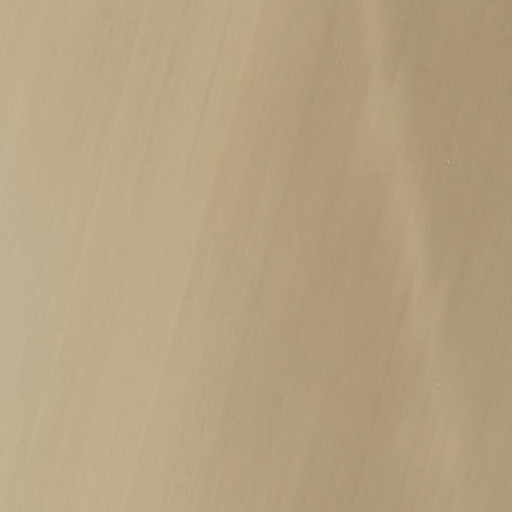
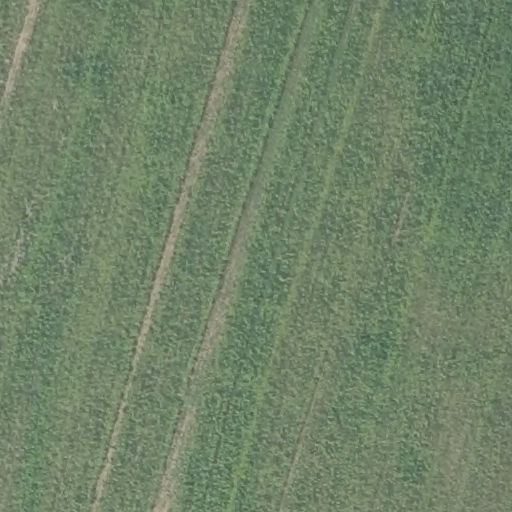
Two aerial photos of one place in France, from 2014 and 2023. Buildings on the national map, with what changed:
[]

